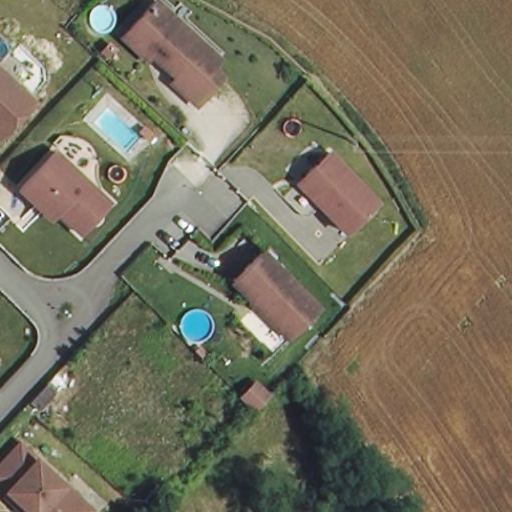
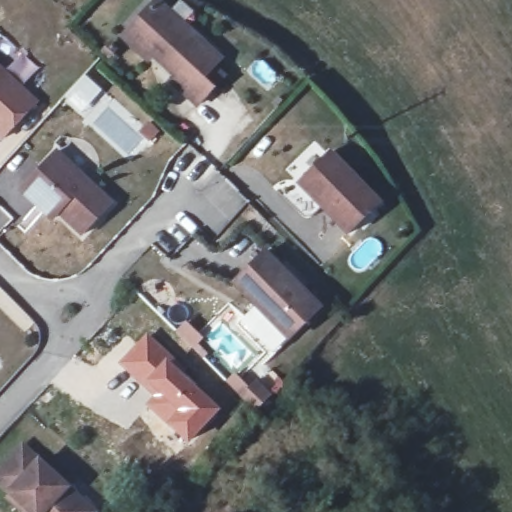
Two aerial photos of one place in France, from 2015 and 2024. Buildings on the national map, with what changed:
unchanged [(216,85),(199,101),(174,79),(179,74),(156,50),(151,55),(126,32),(135,23),(157,0),(164,0),(223,56),(206,75),(216,85)]
unchanged [(38,98),(4,134),(0,130),(0,62),(17,78),(38,98)]
unchanged [(372,187),(383,199),(351,229),(342,220),(321,197),(303,177),(306,174),(334,147),(372,187)]
unchanged [(37,203),(22,189),(58,151),(110,201),(81,232),(58,210),(52,217),(37,203)]
unchanged [(269,311),(263,305),(233,275),(266,245),(293,273),(320,302),(293,327),(289,332),(269,311)]
new [(145,331),(165,348),(186,375),(221,408),(187,443),(144,405),(152,396),(115,362),(145,331)]
new [(235,372),(249,386),(258,378),(275,395),(255,412),(225,382),(235,372)]
unchanged [(12,497),(15,494),(0,479),(0,477),(28,447),(44,462),(84,500),(97,512),(27,512),(12,497)]

